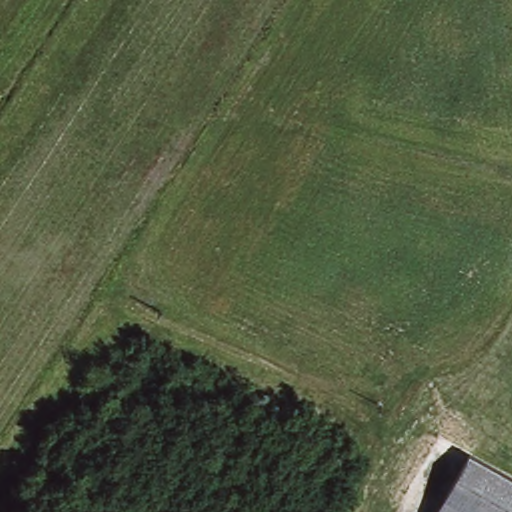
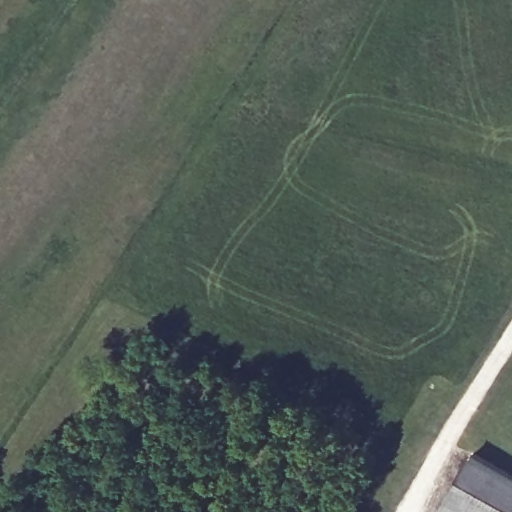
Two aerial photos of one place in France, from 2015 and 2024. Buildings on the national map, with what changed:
unchanged [(512,485),(512,512),(434,512),(436,509),(466,457),(512,485)]

